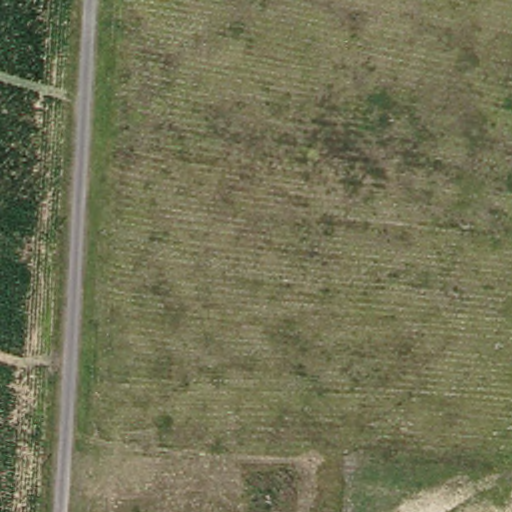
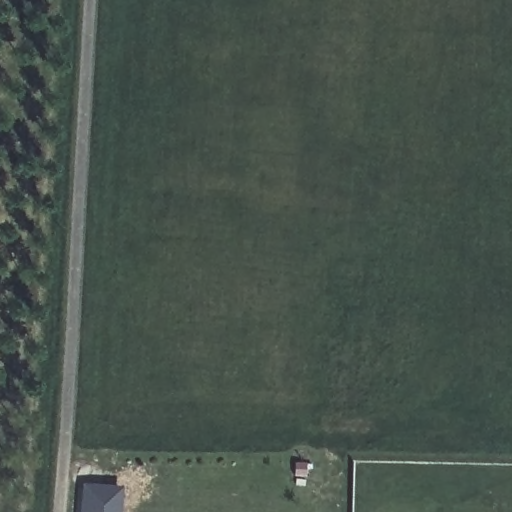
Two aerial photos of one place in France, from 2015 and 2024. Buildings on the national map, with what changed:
new [(121,512),(79,512),(80,484),(122,487),(121,512)]

